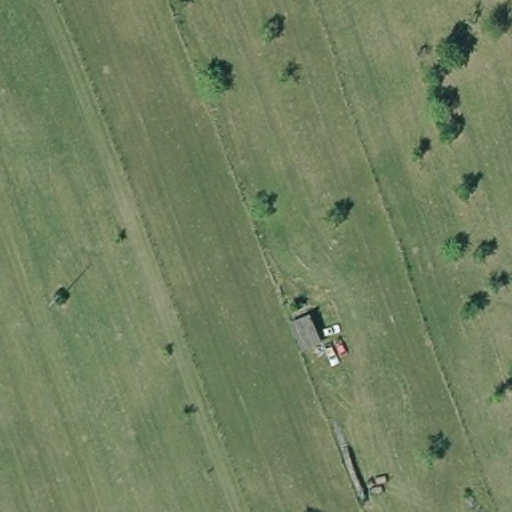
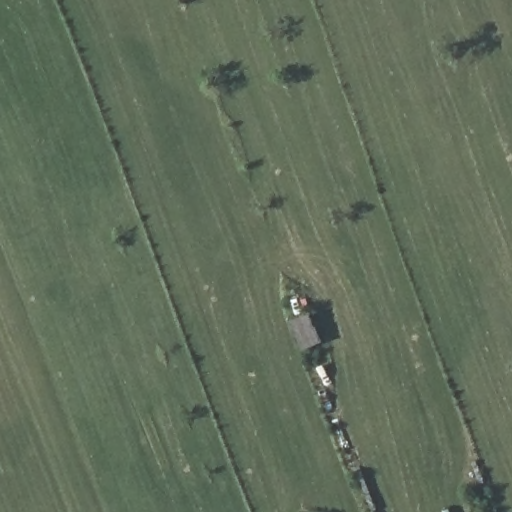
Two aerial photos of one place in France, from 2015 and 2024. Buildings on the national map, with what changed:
unchanged [(286,310),(305,300),(325,347),(303,355),(286,310)]

